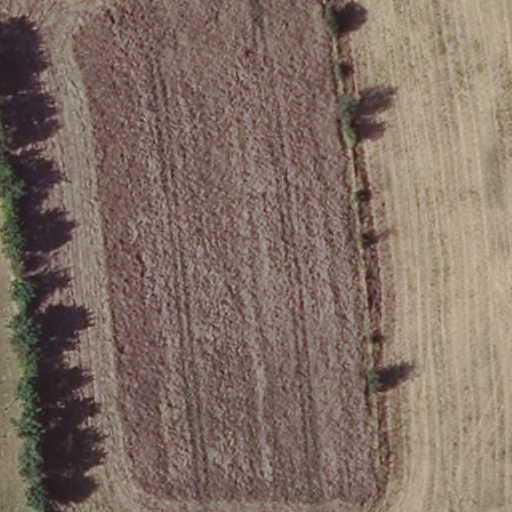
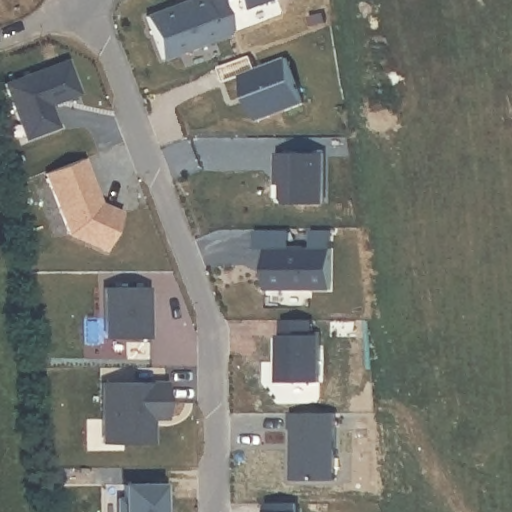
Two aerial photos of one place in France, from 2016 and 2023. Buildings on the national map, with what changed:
new [(162,59),(147,14),(187,0),(219,0),(232,33),(162,59)]
new [(241,0),(268,0),(245,9),(241,0)]
new [(260,121),(241,74),(286,57),(303,104),(260,121)]
new [(66,61),(79,94),(48,104),(57,127),(25,138),(5,84),(66,61)]
new [(105,250),(66,233),(44,174),(85,159),(102,204),(121,212),(105,250)]
new [(267,229),(268,235),(282,234),(282,230),(291,230),(291,247),(256,248),(255,229),(267,229)]
new [(331,247),(331,289),(267,291),(267,249),(331,247)]
new [(150,337),(103,336),(104,288),(150,288),(150,337)]
new [(312,334),(320,335),(320,379),(278,380),(277,334),(281,333),(280,321),(311,320),(312,334)]
new [(102,444),(102,384),(167,384),(167,419),(152,419),(151,444),(102,444)]
new [(163,512),(122,512),(121,484),(163,483),(163,512)]
new [(297,512),(265,512),(265,502),(296,502),(297,512)]

